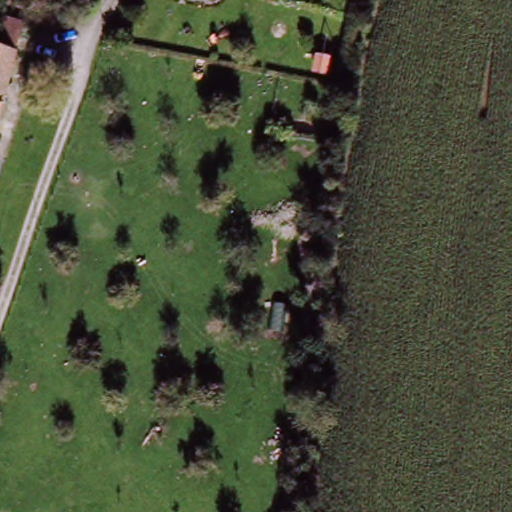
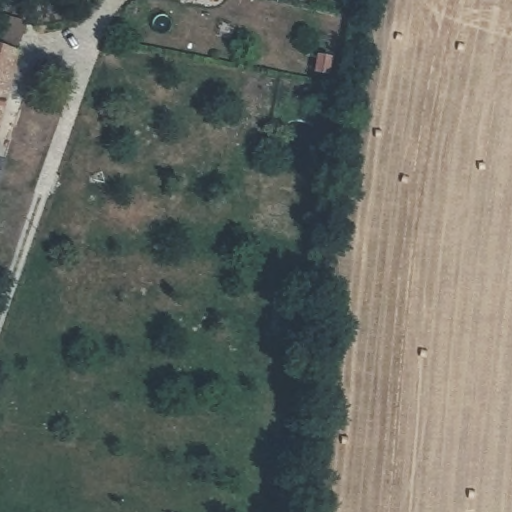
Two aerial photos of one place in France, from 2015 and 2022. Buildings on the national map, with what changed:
unchanged [(0,128),(0,17),(31,26),(0,128)]
unchanged [(0,197),(0,161),(10,164),(0,197)]
unchanged [(295,315),(290,343),(273,339),(279,313),(295,315)]

